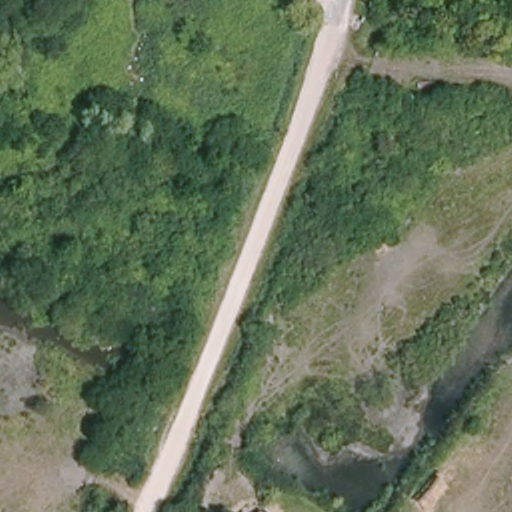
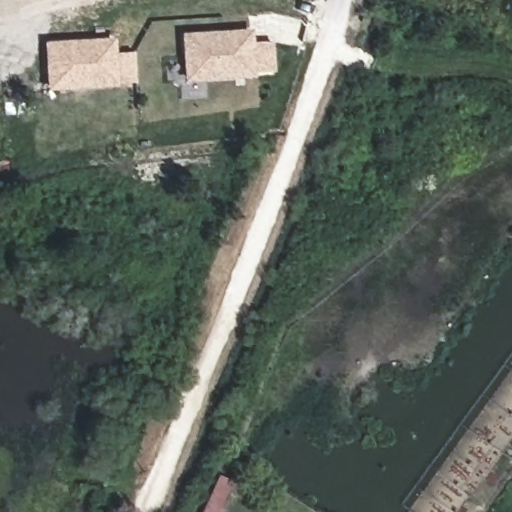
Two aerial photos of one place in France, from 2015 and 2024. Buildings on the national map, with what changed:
new [(247,31),(249,73),(184,77),(183,34),(247,31)]
new [(114,38),(116,84),(46,87),(44,41),(114,38)]

